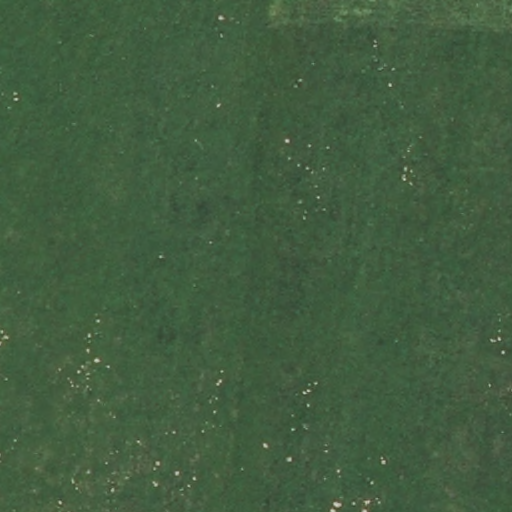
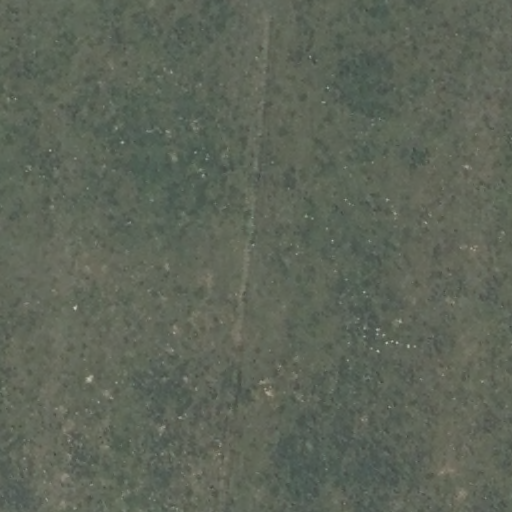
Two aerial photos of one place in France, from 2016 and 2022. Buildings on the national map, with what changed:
[]

